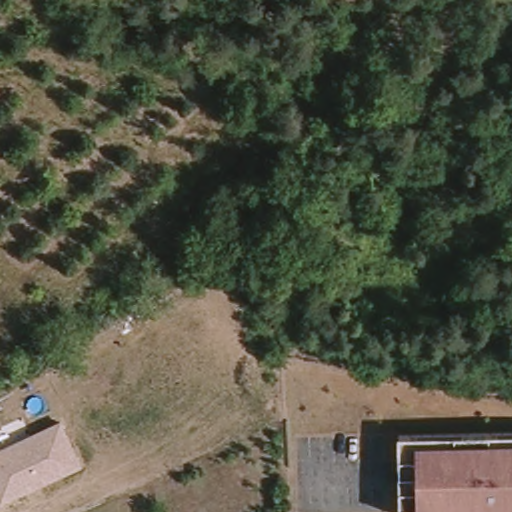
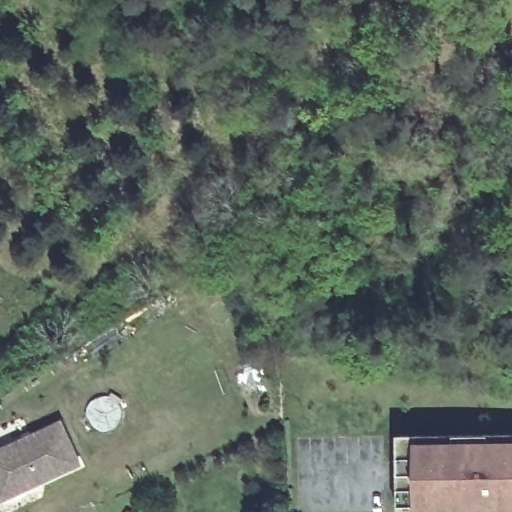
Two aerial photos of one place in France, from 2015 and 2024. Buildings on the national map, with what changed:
unchanged [(320,231),(321,211),(360,216),(357,236),(320,231)]
unchanged [(85,465),(2,504),(0,500),(0,451),(66,418),(85,465)]
unchanged [(398,437),(512,435),(512,512),(399,512),(398,437)]

